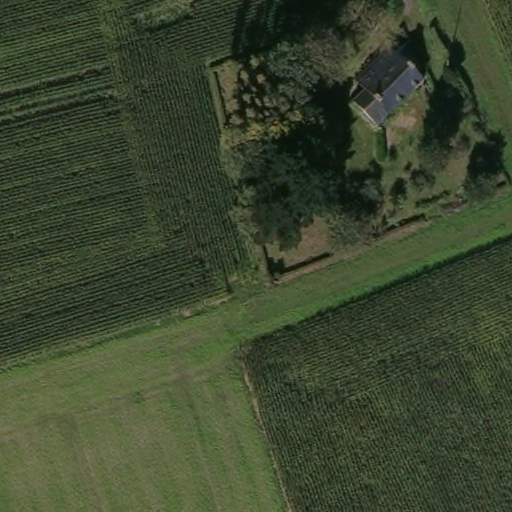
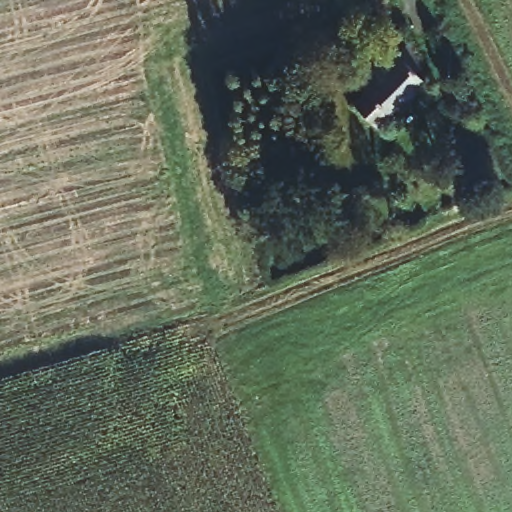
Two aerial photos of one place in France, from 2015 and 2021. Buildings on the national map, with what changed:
unchanged [(368,124),(357,114),(365,103),(355,92),(389,56),(394,61),(407,50),(420,73),(412,81),(420,89),(378,133),(368,124)]

